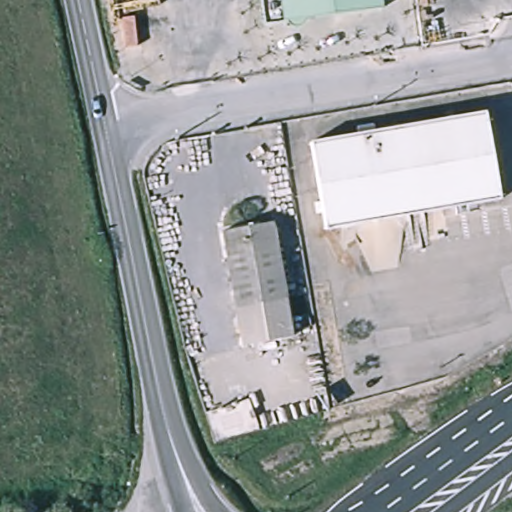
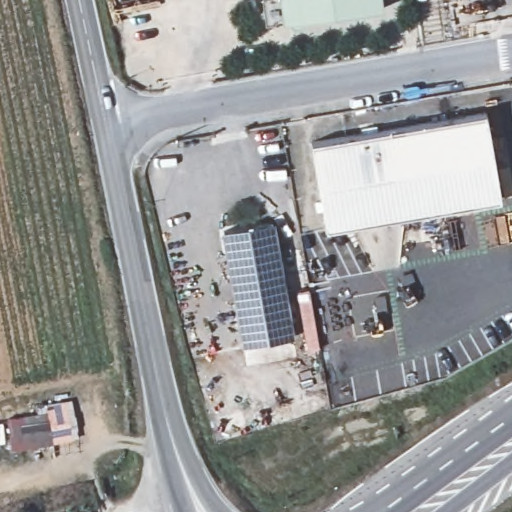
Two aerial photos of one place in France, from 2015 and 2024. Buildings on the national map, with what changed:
unchanged [(283,25),(280,0),(386,0),(388,10),(283,25)]
unchanged [(326,232),(312,145),(486,116),(501,204),(326,232)]
unchanged [(228,264),(224,237),(274,229),(279,256),(228,264)]
unchanged [(287,306),(238,315),(228,264),(279,256),(287,306)]
unchanged [(293,336),(243,345),(238,315),(287,306),(293,336)]
new [(47,400),(70,396),(78,440),(11,452),(6,420),(49,412),(47,400)]

